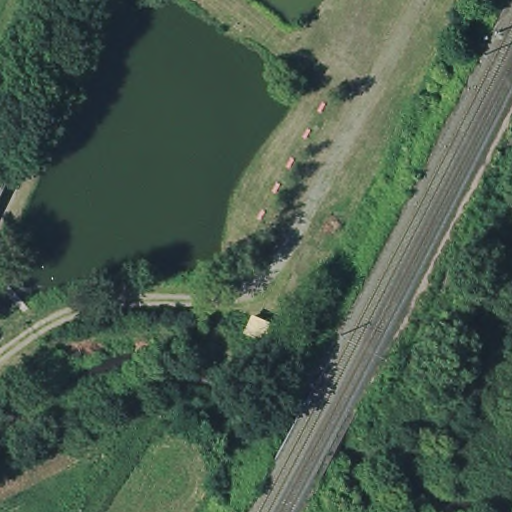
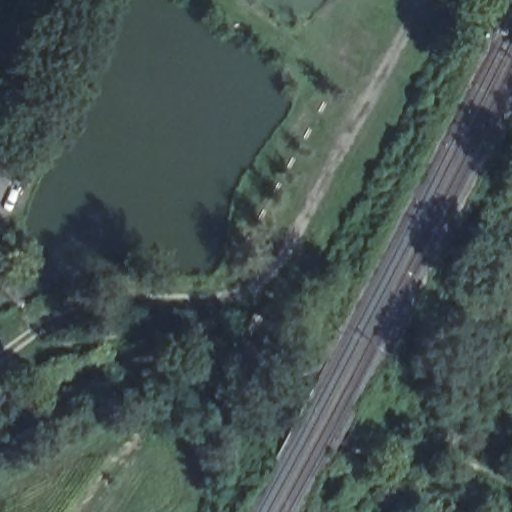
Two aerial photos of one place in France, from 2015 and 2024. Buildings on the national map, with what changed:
unchanged [(6,178),(0,190),(0,175),(6,178)]

